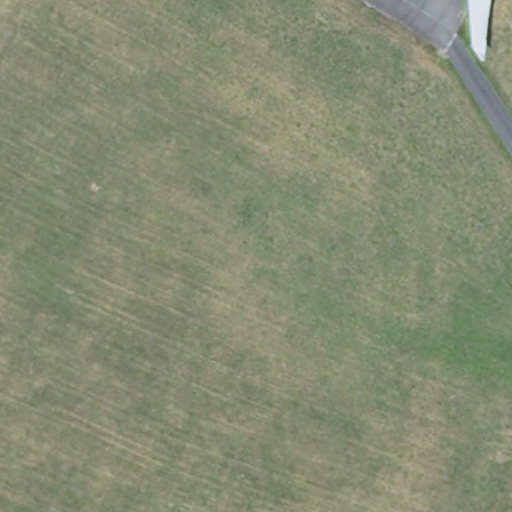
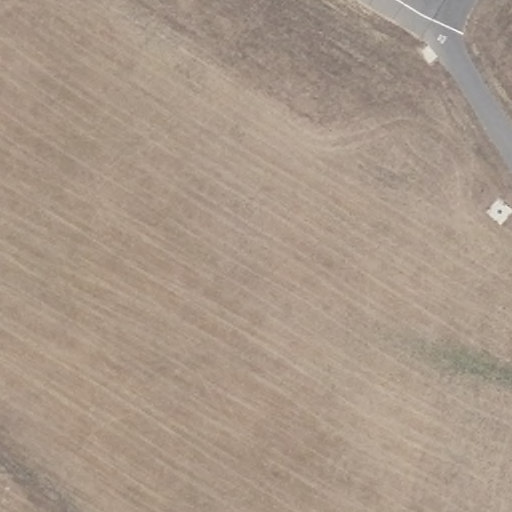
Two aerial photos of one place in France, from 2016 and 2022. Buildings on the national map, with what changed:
[]

